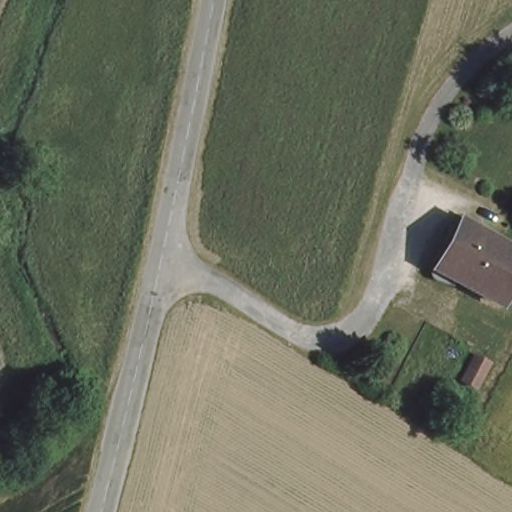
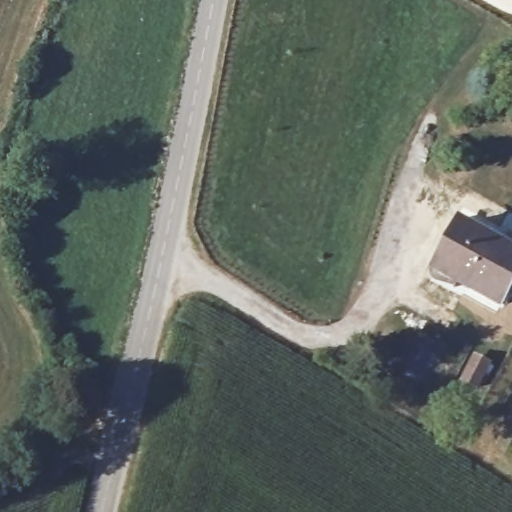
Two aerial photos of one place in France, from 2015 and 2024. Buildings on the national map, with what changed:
unchanged [(512,300),(507,310),(441,275),(465,228),(512,253),(512,300)]

